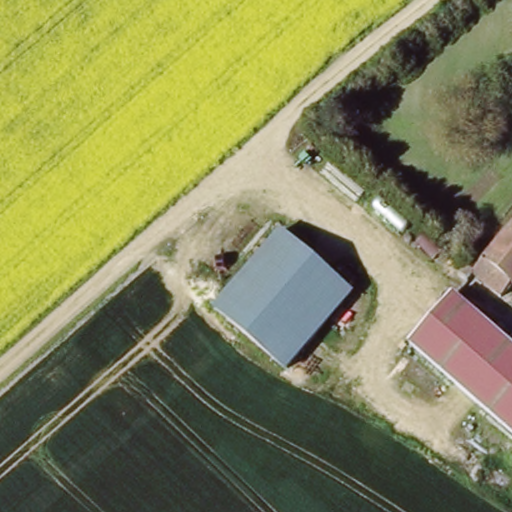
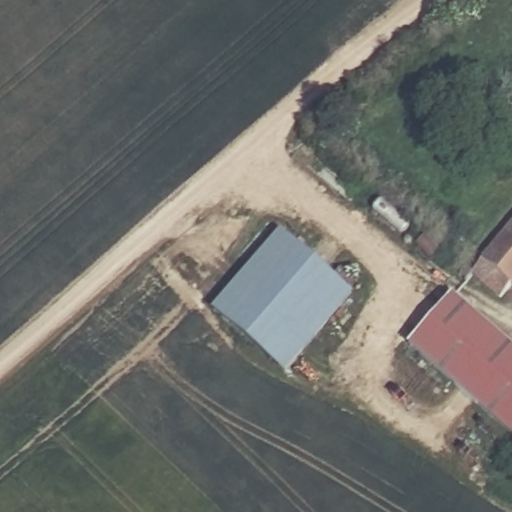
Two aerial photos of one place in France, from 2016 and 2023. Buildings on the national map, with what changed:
unchanged [(505,301),(478,273),(512,231),(512,292),(505,301)]
unchanged [(283,232),(354,294),(285,373),(213,313),(283,232)]
unchanged [(465,274),(470,268),(478,273),(473,279),(465,274)]
unchanged [(412,340),(453,291),(512,343),(512,427),(412,340)]

